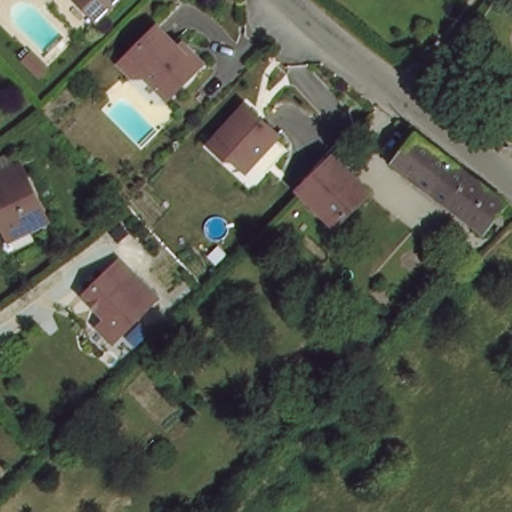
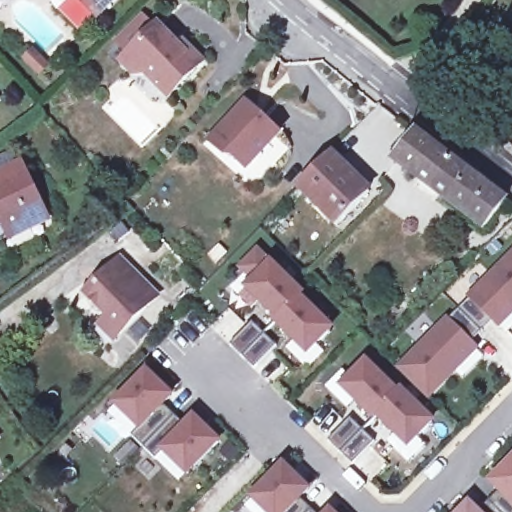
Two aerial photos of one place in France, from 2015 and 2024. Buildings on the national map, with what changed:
unchanged [(97,23),(75,0),(120,0),(97,23)]
unchanged [(156,84),(147,74),(135,75),(122,63),(157,27),(179,49),(184,44),(189,50),(202,63),(177,89),(169,96),(156,84)]
unchanged [(32,52),(47,66),(40,74),(25,60),(32,52)]
unchanged [(279,134),(251,165),(240,155),(232,155),(215,140),(247,105),(279,134)]
unchanged [(391,166),(412,139),(502,207),(480,235),(391,166)]
unchanged [(332,155),(370,192),(337,225),(300,189),(332,155)]
unchanged [(49,220),(10,239),(0,218),(0,174),(22,164),(49,220)]
new [(303,295),(300,298),(331,328),(308,353),(276,322),(280,320),(249,288),(256,281),(242,268),(259,251),(303,295)]
new [(509,332),(500,324),(499,325),(494,320),(472,342),(477,348),(475,349),(484,356),(463,378),(455,370),(430,396),(400,368),(512,256),(512,329),(509,332)]
unchanged [(90,295),(115,271),(130,286),(141,275),(162,296),(119,340),(105,326),(113,318),(90,295)]
new [(276,345),(254,369),(230,345),(253,323),(276,345)]
new [(397,393),(401,390),(432,421),(409,446),(378,415),(375,418),(344,387),(367,365),(397,393)]
new [(170,396),(164,404),(188,426),(195,420),(217,442),(180,482),(109,412),(147,373),(170,396)]
new [(375,441),(352,465),(329,440),(352,417),(375,441)]
new [(479,512),(500,491),(492,481),(512,463),(512,512),(479,512)]
new [(300,498),(314,512),(250,512),(245,507),(284,467),(308,490),(300,498)]
new [(477,512),(464,512),(470,505),(477,512)]

